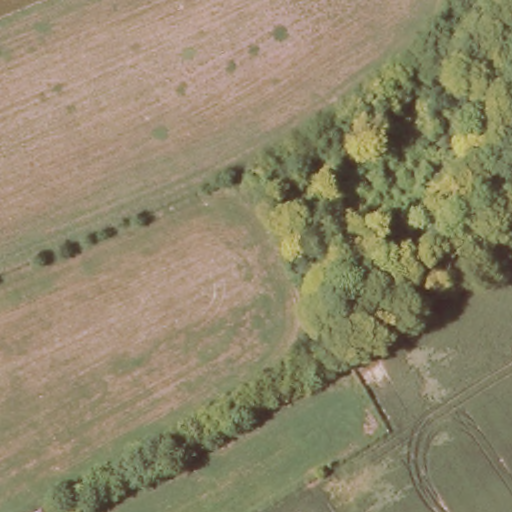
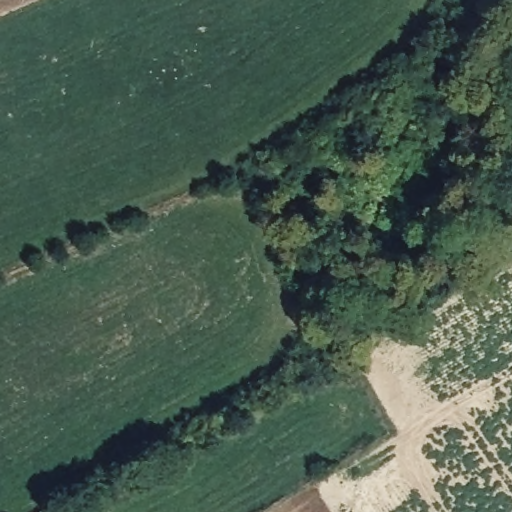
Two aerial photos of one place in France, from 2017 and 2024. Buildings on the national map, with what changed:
unchanged [(42,512),(32,512),(39,508),(42,512)]

